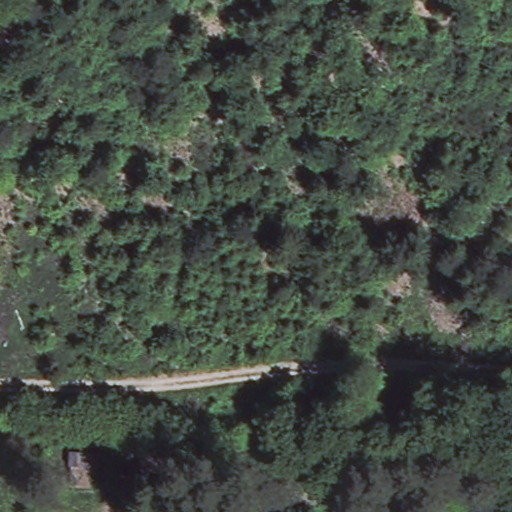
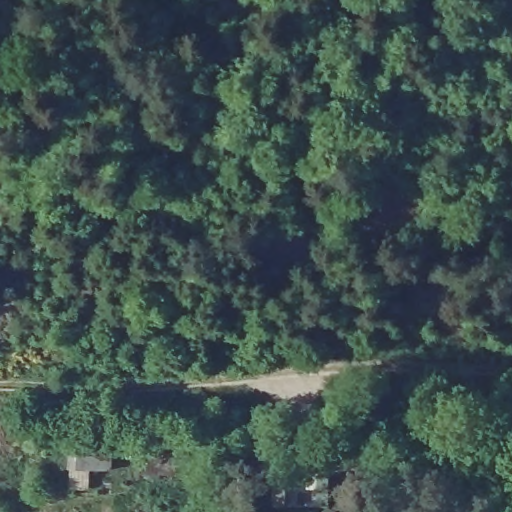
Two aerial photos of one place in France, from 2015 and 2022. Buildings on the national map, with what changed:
unchanged [(152,450),(187,450),(186,471),(151,471),(152,450)]
unchanged [(70,452),(110,453),(110,466),(70,465),(70,452)]

